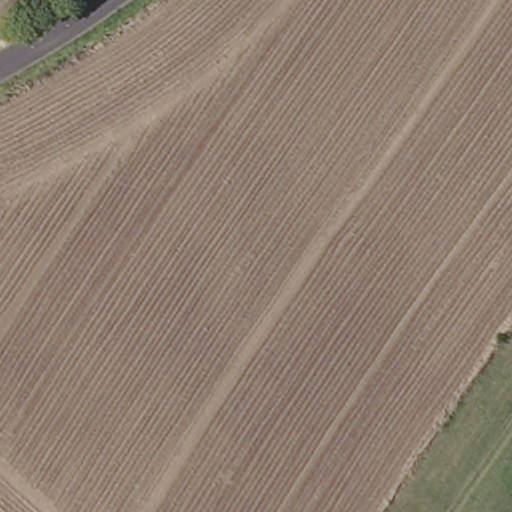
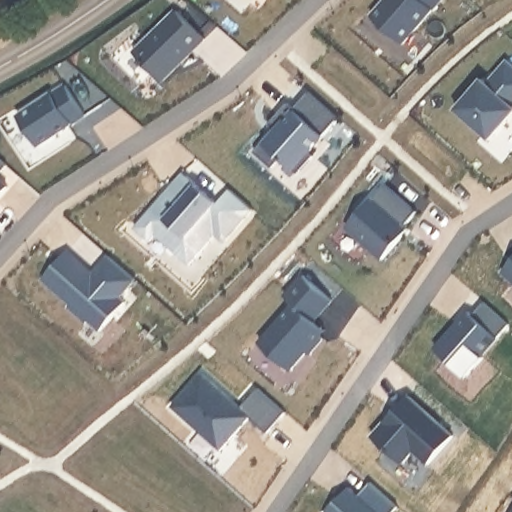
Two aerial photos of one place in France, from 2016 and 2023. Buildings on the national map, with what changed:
new [(432,11),(402,46),(370,16),(384,0),(443,0),(432,11)]
new [(175,15),(202,44),(159,87),(131,57),(175,15)]
new [(512,115),(490,139),(457,110),(483,78),(488,83),(506,61),(512,66),(512,115)]
new [(63,89),(83,119),(35,150),(15,120),(63,89)]
new [(272,134),(266,130),(285,108),(292,114),(307,97),(336,124),(307,157),(311,161),(295,178),(278,163),(270,173),(252,157),(272,134)]
new [(8,167),(0,176),(0,159),(8,167)]
new [(219,203),(229,189),(252,211),(224,244),(214,236),(187,266),(154,238),(147,243),(132,230),(182,173),(219,203)]
new [(10,186),(0,197),(0,177),(10,186)]
new [(382,188),(415,216),(397,237),(401,240),(380,264),(345,232),(382,188)]
new [(95,272),(109,257),(135,282),(122,299),(125,304),(97,333),(67,308),(70,306),(41,281),(69,251),(95,272)]
new [(512,263),(512,287),(500,276),(512,263)]
new [(258,348),(292,310),(283,301),(301,280),(330,305),(311,326),(312,335),(320,344),(307,359),(304,356),(288,374),(258,348)]
new [(467,316),(470,320),(482,307),(507,330),(480,361),(481,362),(465,382),(433,354),(467,316)]
new [(200,377),(239,412),(255,393),(284,418),(265,438),(247,422),(219,455),(170,412),(200,377)]
new [(407,401),(452,441),(427,469),(412,455),(400,468),(371,442),(407,401)]
new [(395,512),(326,512),(350,488),(358,496),(370,483),(397,510),(395,512)]

